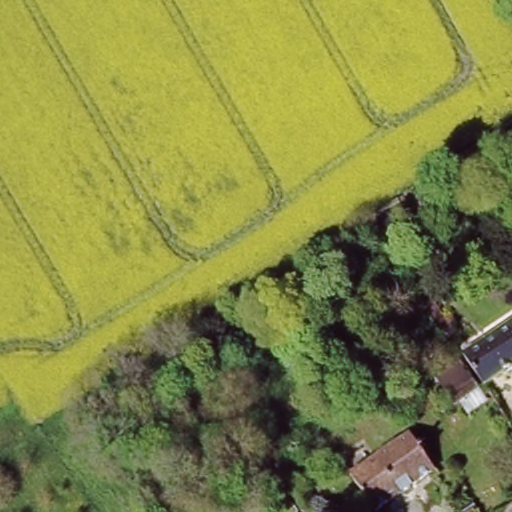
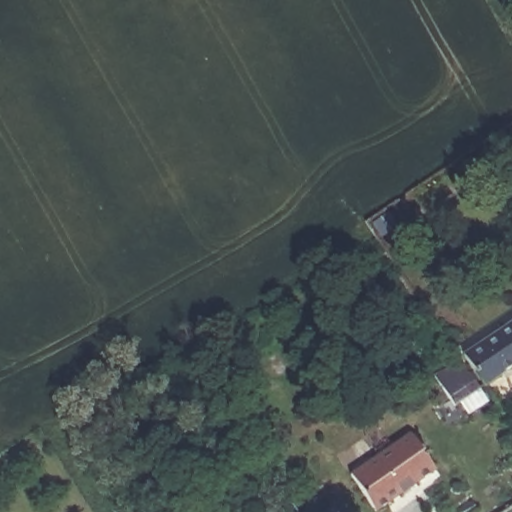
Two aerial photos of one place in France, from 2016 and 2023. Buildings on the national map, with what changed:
unchanged [(364,219),(376,212),(391,233),(379,240),(378,239),(374,234),(364,219)]
unchanged [(486,389),(484,390),(468,364),(462,369),(457,362),(512,324),(512,372),(486,389)]
unchanged [(453,410),(443,395),(438,388),(463,371),(468,379),(478,394),(453,410)]
unchanged [(371,453),(383,444),(388,451),(408,437),(434,474),(376,512),(372,512),(349,477),(375,459),(371,453)]
unchanged [(472,501),(476,508),(470,512),(462,512),(459,509),(472,501)]

